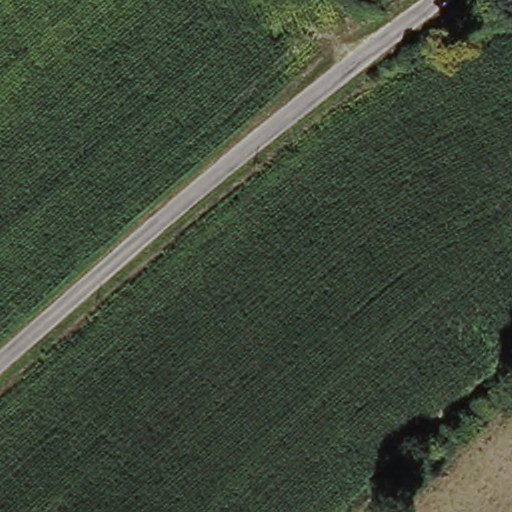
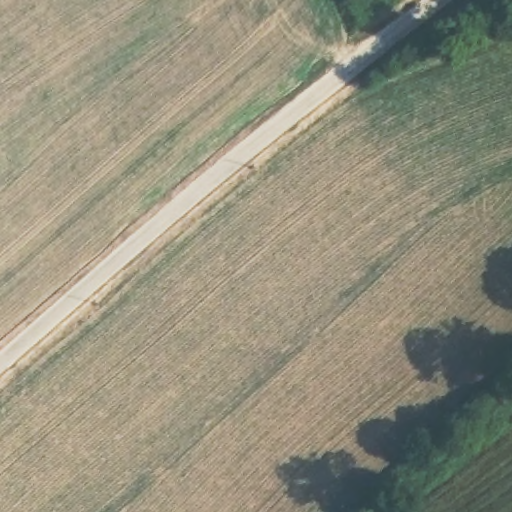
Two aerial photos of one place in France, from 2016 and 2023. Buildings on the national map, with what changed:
[]

